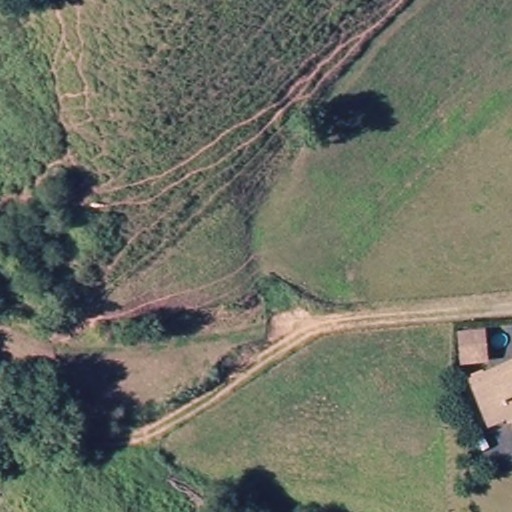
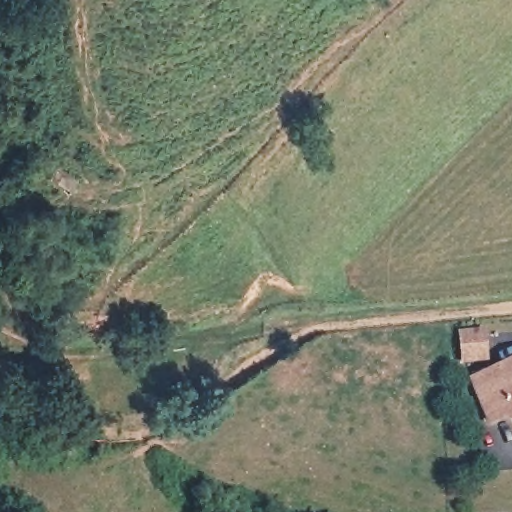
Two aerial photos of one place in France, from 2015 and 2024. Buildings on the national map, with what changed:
unchanged [(464,334),(484,332),(488,357),(468,360),(464,334)]
unchanged [(512,367),(512,420),(508,422),(506,418),(488,426),(470,385),(512,367)]

